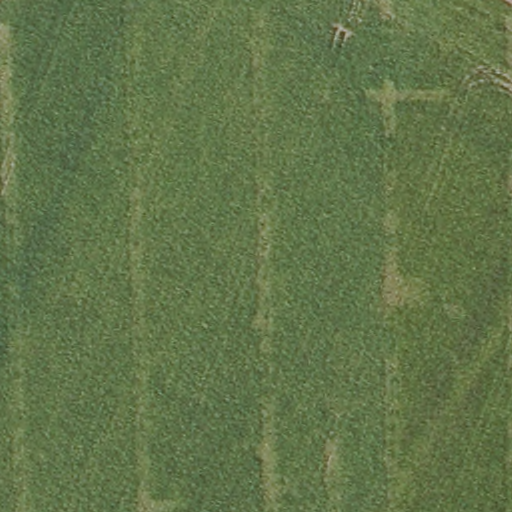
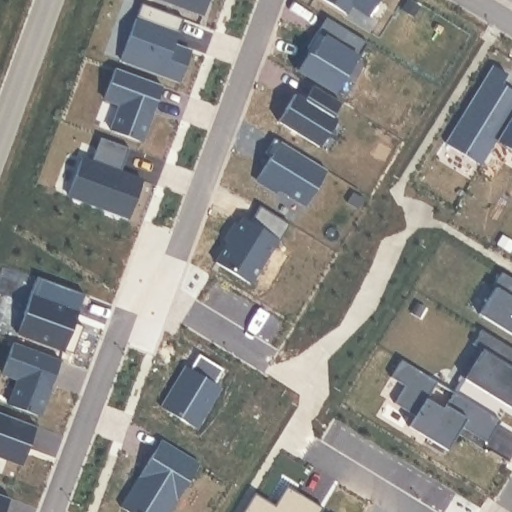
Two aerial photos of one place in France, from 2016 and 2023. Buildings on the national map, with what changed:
new [(202,12),(170,0),(206,0),(202,12)]
new [(368,16),(349,5),(344,14),(322,0),(377,0),(368,16)]
new [(180,18),(171,46),(189,52),(179,82),(122,61),(140,4),(180,18)]
new [(366,45),(341,87),(337,85),(332,92),(296,71),(324,22),(366,45)]
new [(161,85),(141,141),(109,132),(119,105),(105,100),(114,68),(161,85)]
new [(494,70),(512,80),(505,90),(512,95),(512,157),(495,147),(483,167),(448,148),(494,70)]
new [(292,91),(304,100),(312,85),(340,102),(332,116),(336,119),(318,150),(274,124),(292,91)]
new [(81,158),(91,162),(100,137),(131,149),(122,174),(143,181),(129,220),(67,199),(81,158)]
new [(331,170),(311,204),(283,185),(281,190),(263,179),(278,155),(272,152),(280,138),(331,170)]
new [(287,242),(283,240),(255,282),(222,262),(235,242),(231,240),(243,223),(253,230),(268,207),(296,225),(287,242)]
new [(512,279),(512,336),(475,312),(491,286),(489,285),(498,270),(512,279)]
new [(81,290),(75,310),(71,308),(67,317),(80,322),(70,350),(19,331),(26,312),(21,310),(35,273),(81,290)]
new [(512,347),(512,405),(470,378),(486,350),(478,345),(486,330),(512,347)]
new [(24,467),(0,460),(0,414),(3,415),(15,380),(0,375),(13,343),(60,360),(24,467)]
new [(221,365),(212,380),(219,384),(194,425),(157,402),(182,362),(187,364),(196,350),(221,365)]
new [(504,420),(491,440),(461,422),(446,446),(414,427),(421,415),(400,403),(409,387),(396,380),(406,360),(504,420)]
new [(123,512),(117,508),(148,454),(153,457),(164,440),(200,462),(170,512),(123,512)]
new [(287,484),(324,508),(321,512),(242,512),(255,491),(275,503),(287,484)]
new [(12,512),(0,512),(0,494),(15,500),(12,512)]

